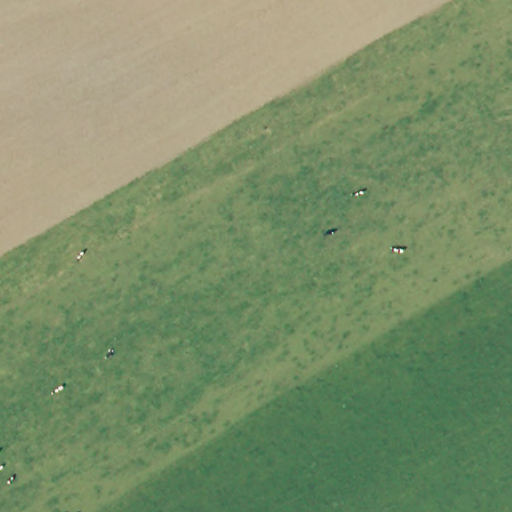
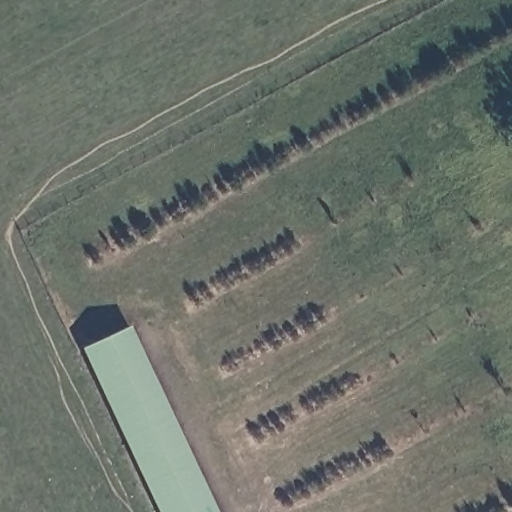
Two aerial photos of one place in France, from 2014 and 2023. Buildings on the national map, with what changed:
new [(82,347),(131,326),(219,512),(159,512),(82,347)]

